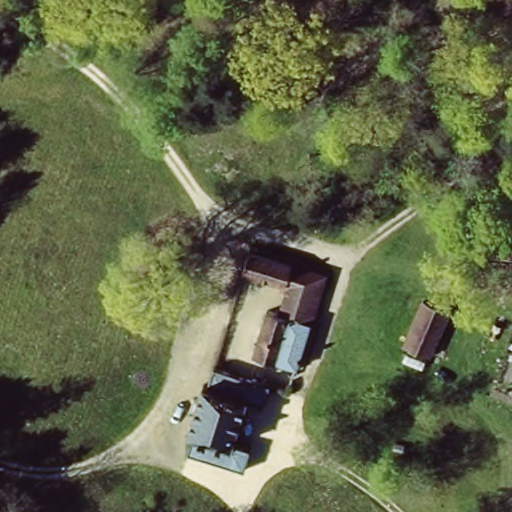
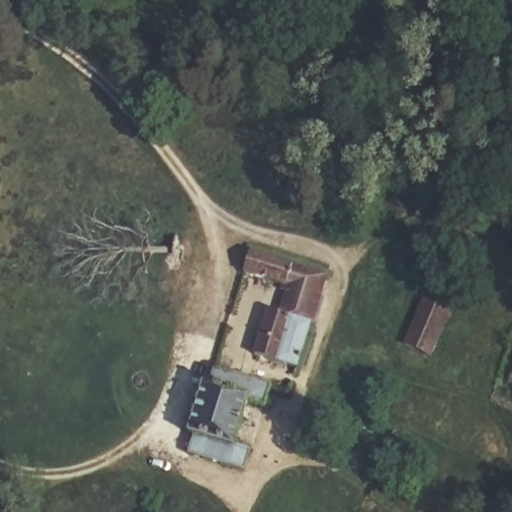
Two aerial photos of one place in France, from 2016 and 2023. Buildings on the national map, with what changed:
unchanged [(250,248),(328,276),(294,368),(256,356),(273,308),(294,315),(302,291),(243,271),(250,248)]
unchanged [(452,312),(434,364),(402,348),(422,299),(452,312)]
unchanged [(237,445),(236,472),(184,460),(206,385),(216,367),(257,377),(253,396),(237,445)]

